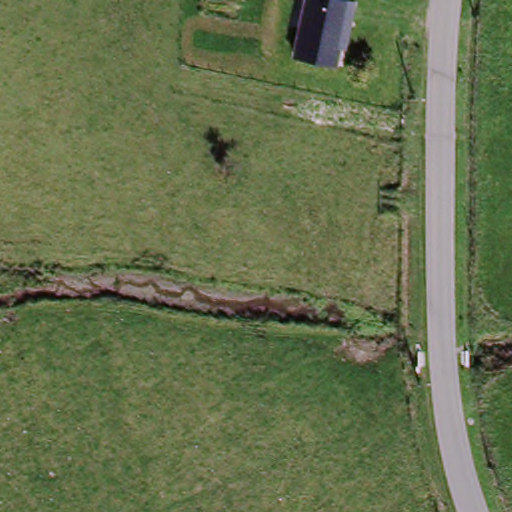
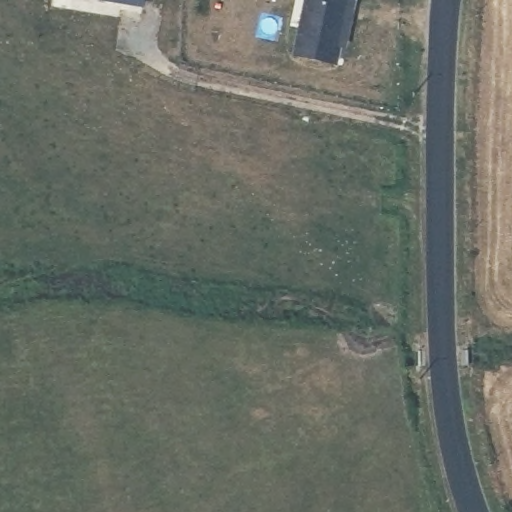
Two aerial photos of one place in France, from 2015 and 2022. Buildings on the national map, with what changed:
new [(101,0),(145,0),(144,7),(101,0)]
unchanged [(356,25),(350,25),(341,68),(299,59),(312,0),(333,0),(359,6),(356,25)]

